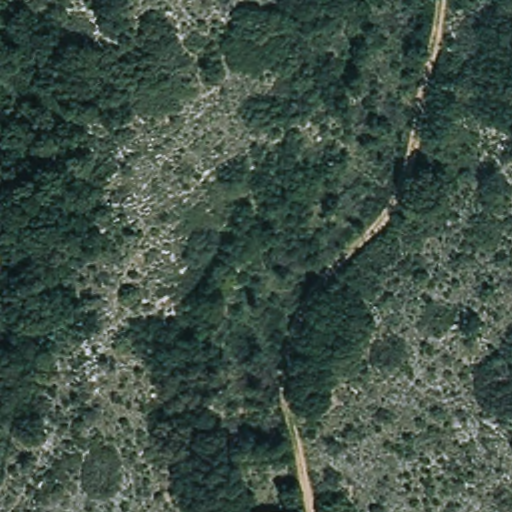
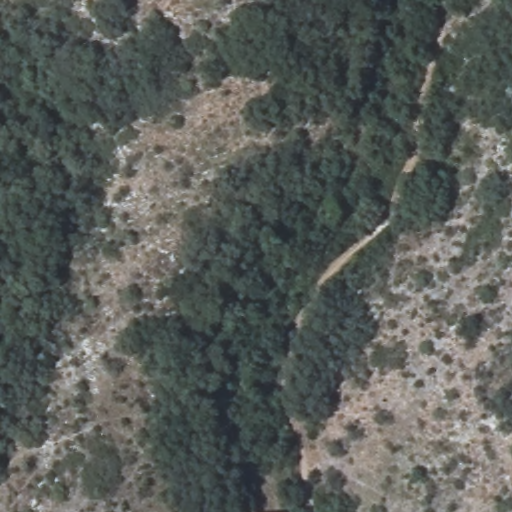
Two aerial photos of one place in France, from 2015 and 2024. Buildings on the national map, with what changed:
[]

